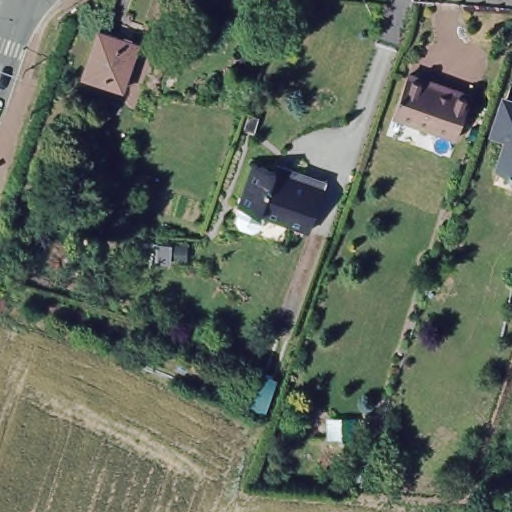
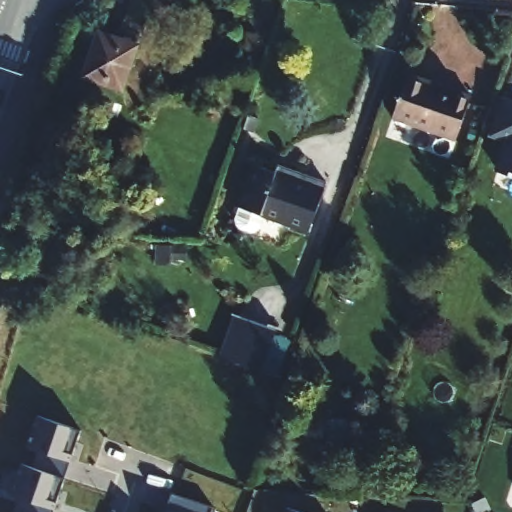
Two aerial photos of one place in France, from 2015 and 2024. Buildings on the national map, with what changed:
unchanged [(138,42),(123,86),(84,73),(98,29),(138,42)]
unchanged [(402,97),(410,75),(457,92),(458,89),(474,95),(458,138),(400,117),(395,115),(402,97)]
unchanged [(497,170),(508,141),(491,135),(502,102),(512,105),(512,175),(497,170)]
unchanged [(263,227),(258,228),(247,224),(243,220),(243,215),(247,203),(245,203),(261,161),(283,169),(286,163),(305,169),(334,180),(315,229),(271,212),(267,224),(263,227)]
new [(278,329),(275,334),(291,341),(278,377),(220,357),(235,315),(278,329)]
new [(14,512),(18,499),(8,496),(21,462),(32,466),(37,452),(25,447),(37,415),(82,430),(55,507),(53,512),(14,512)]
new [(164,512),(171,493),(213,507),(212,512),(164,512)]
new [(298,512),(283,512),(285,508),(298,512)]

